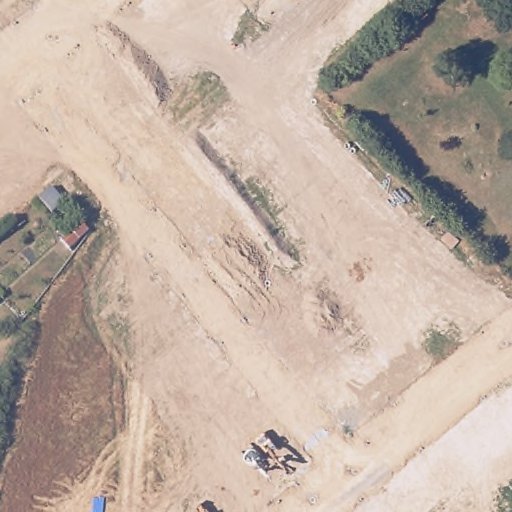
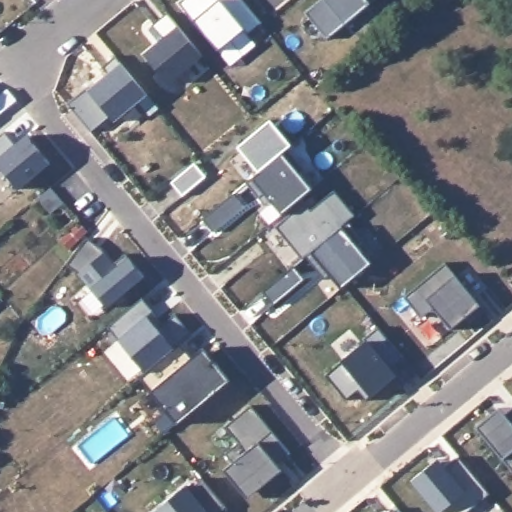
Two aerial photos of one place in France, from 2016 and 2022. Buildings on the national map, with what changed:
new [(244,0),(263,23),(249,35),(244,29),(219,51),(180,3),(184,0),(244,0)]
new [(375,0),(327,40),(305,13),(321,0),(375,0)]
new [(164,39),(153,26),(168,13),(204,56),(170,84),(145,55),(164,39)]
new [(109,74),(103,67),(116,56),(148,94),(115,122),(89,90),(109,74)]
new [(273,121),(292,144),(260,171),(240,148),(273,121)]
new [(5,131),(16,145),(28,135),(51,163),(20,189),(0,166),(0,136),(5,131)]
new [(283,152),(313,188),(282,213),(252,178),(260,171),(283,152)]
new [(196,163),(207,176),(184,195),(172,182),(196,163)]
new [(305,203),(312,211),(337,190),(356,215),(341,228),(371,263),(342,287),(311,251),(302,258),(277,227),(305,203)]
new [(85,243),(100,250),(112,265),(124,255),(143,278),(106,309),(77,276),(64,270),(85,243)]
new [(446,261),(481,304),(451,328),(437,311),(429,310),(421,317),(403,296),(446,261)]
new [(142,298),(154,311),(147,316),(158,328),(176,313),(192,334),(181,343),(144,375),(106,329),(142,298)]
new [(367,340),(364,337),(378,326),(405,357),(391,368),(396,374),(366,399),(358,390),(347,399),(326,374),(367,340)]
new [(144,375),(181,343),(192,356),(204,346),(231,379),(177,423),(140,378),(144,375)]
new [(231,460),(223,451),(237,440),(224,424),(249,402),(289,450),(275,462),(279,468),(246,496),(222,468),(231,460)]
new [(507,416),(512,412),(512,472),(475,426),(490,414),(498,406),(507,416)]
new [(437,457),(442,462),(446,467),(459,456),(490,492),(466,512),(438,512),(411,479),(431,463),(437,457)]
new [(186,484),(190,488),(203,476),(227,505),(219,512),(152,512),(186,484)]
new [(398,507),(402,512),(392,512),(398,507)]
new [(377,508),(379,512),(372,512),(377,508)]

